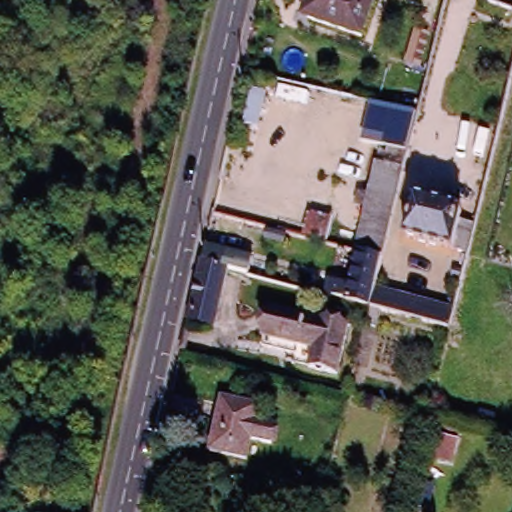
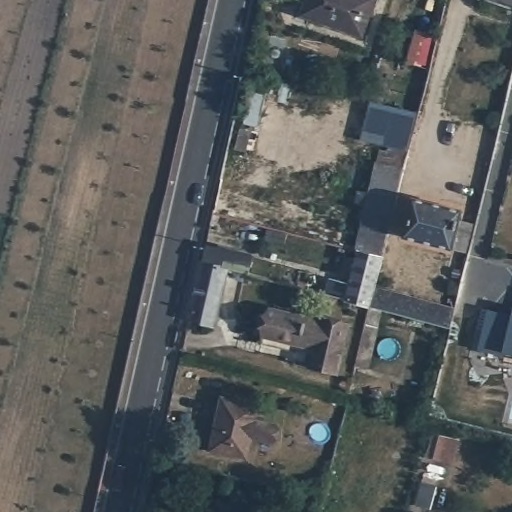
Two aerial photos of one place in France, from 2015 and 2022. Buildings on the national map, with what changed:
unchanged [(300,15),(306,0),(374,0),(362,35),(300,15)]
unchanged [(414,113),(405,148),(363,139),(371,104),(414,113)]
unchanged [(372,165),(376,163),(383,165),(389,148),(403,152),(392,199),(366,192),(372,165)]
unchanged [(392,199),(378,257),(354,250),(352,250),(366,192),(392,199)]
unchanged [(462,252),(446,248),(397,235),(408,195),(456,209),(454,219),(469,224),(462,252)]
unchanged [(197,310),(196,317),(189,316),(202,257),(206,241),(254,254),(250,270),(227,264),(217,315),(197,310)]
unchanged [(361,325),(365,308),(326,297),(331,278),(346,281),(354,250),(378,257),(370,289),(451,310),(446,330),(378,312),(375,325),(364,369),(351,367),(361,325)]
unchanged [(448,288),(456,290),(455,295),(447,293),(448,288)]
unchanged [(293,346),(294,343),(259,334),(266,309),(344,328),(334,374),(305,367),(310,350),(293,346)]
new [(512,316),(512,354),(506,352),(505,356),(479,349),(489,310),(512,316)]
unchanged [(249,454),(213,447),(223,394),(260,402),(249,454)]
unchanged [(433,429),(461,436),(454,467),(428,462),(433,429)]

